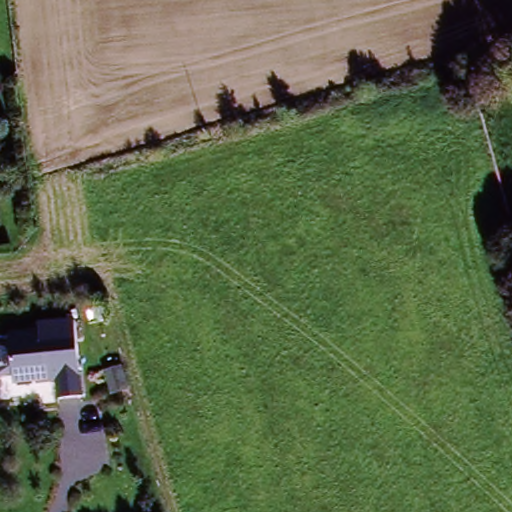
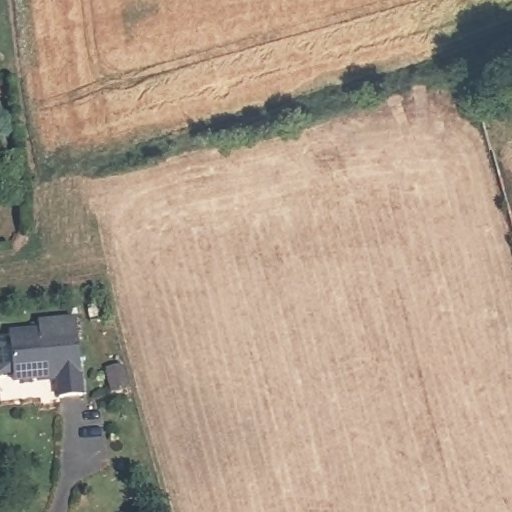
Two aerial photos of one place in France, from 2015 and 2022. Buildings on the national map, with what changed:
unchanged [(60,395),(57,370),(15,372),(12,325),(44,323),(43,317),(80,314),(86,392),(60,395)]

